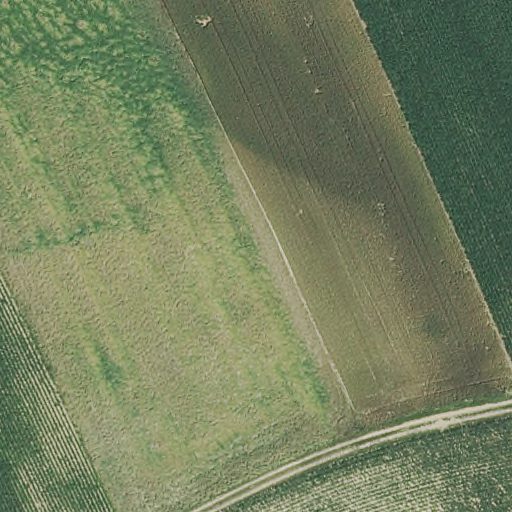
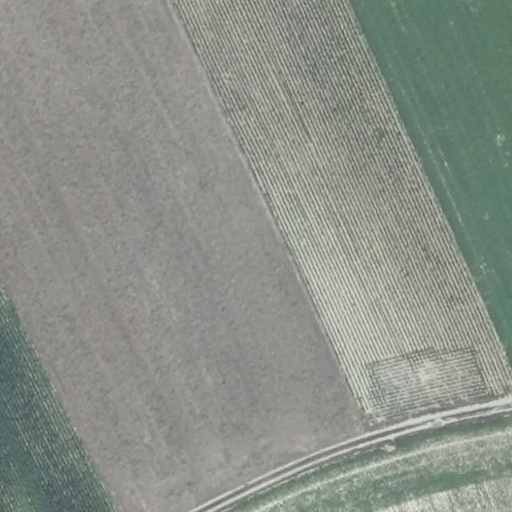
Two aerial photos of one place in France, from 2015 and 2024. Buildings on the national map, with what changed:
[]

